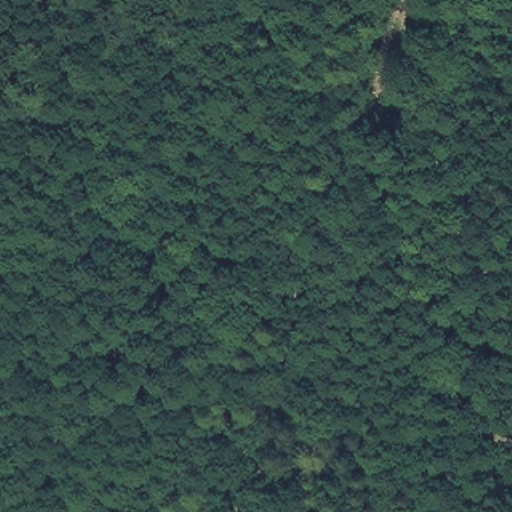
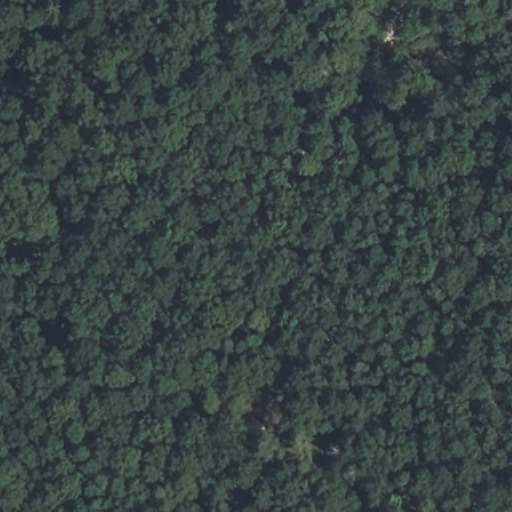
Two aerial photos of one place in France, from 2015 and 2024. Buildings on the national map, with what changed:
[]

